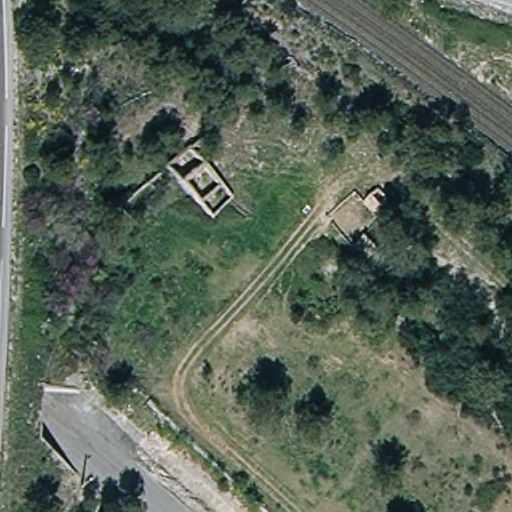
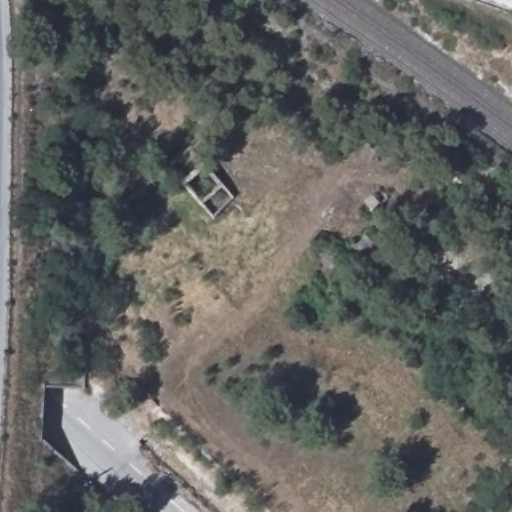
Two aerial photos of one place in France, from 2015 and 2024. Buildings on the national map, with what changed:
unchanged [(360,200),(378,182),(390,201),(374,215),(360,200)]
unchanged [(384,258),(371,270),(345,244),(358,232),(384,258)]

